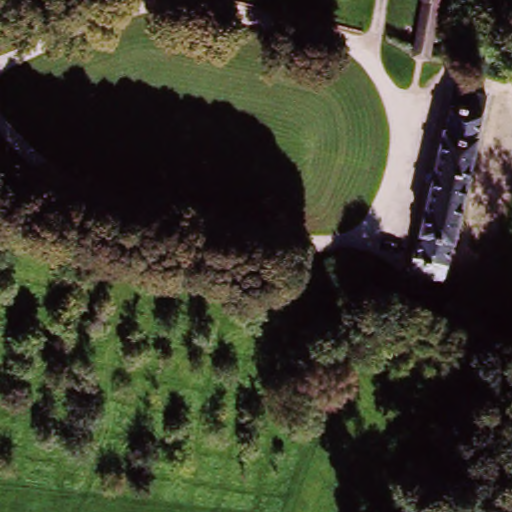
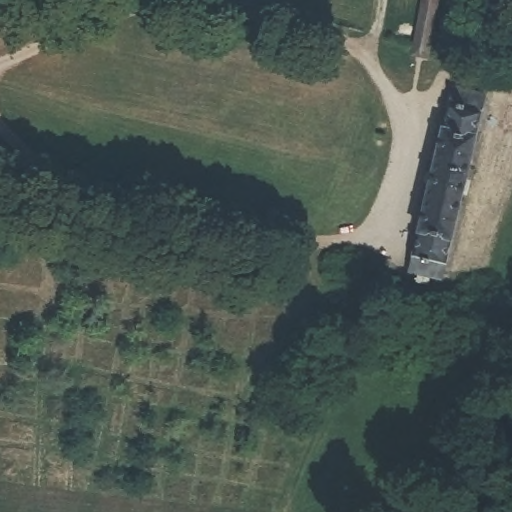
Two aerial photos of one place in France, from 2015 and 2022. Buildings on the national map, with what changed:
unchanged [(416,52),(421,19),(420,18),(423,0),(440,0),(430,55),(416,52)]
unchanged [(406,279),(451,93),(483,100),(438,287),(406,279)]

